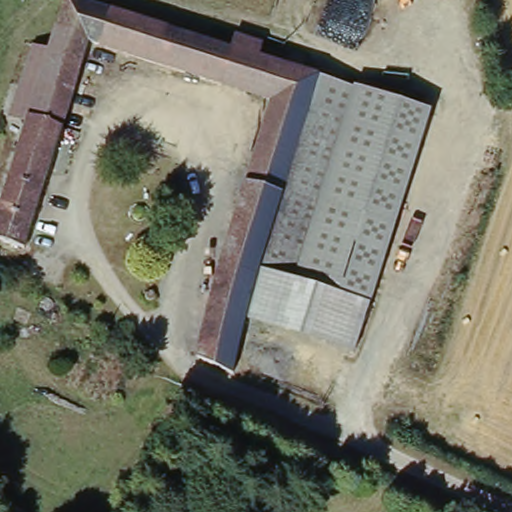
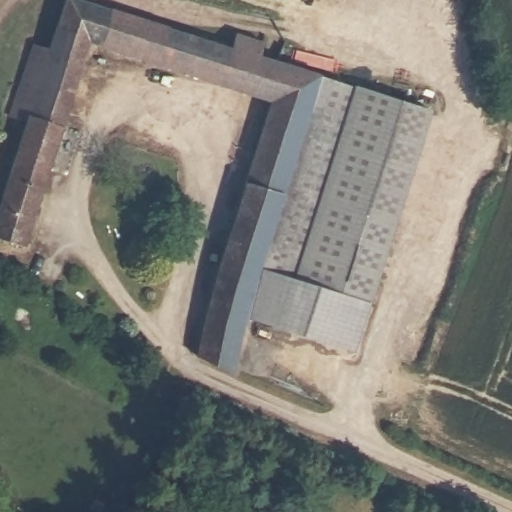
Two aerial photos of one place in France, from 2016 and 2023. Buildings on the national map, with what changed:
unchanged [(234,372),(200,361),(200,335),(224,244),(243,182),(270,101),(90,42),(26,248),(0,240),(0,201),(26,117),(10,114),(33,43),(48,46),(63,0),(83,0),(233,45),(236,31),(265,41),(261,55),(320,74),(247,317),(234,372)]
unchanged [(320,74),(431,109),(355,351),(247,317),(320,74)]
unchanged [(182,388),(165,424),(141,412),(158,376),(182,388)]

